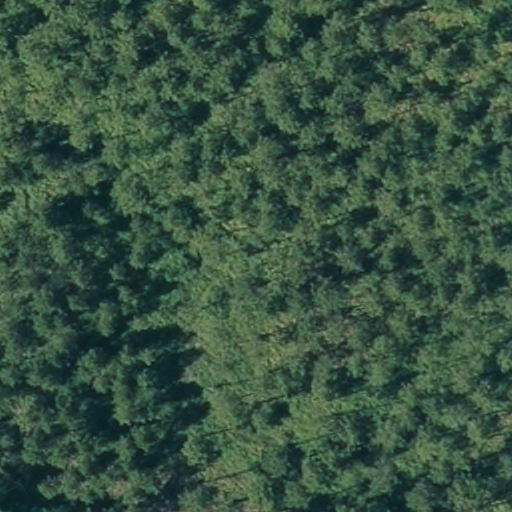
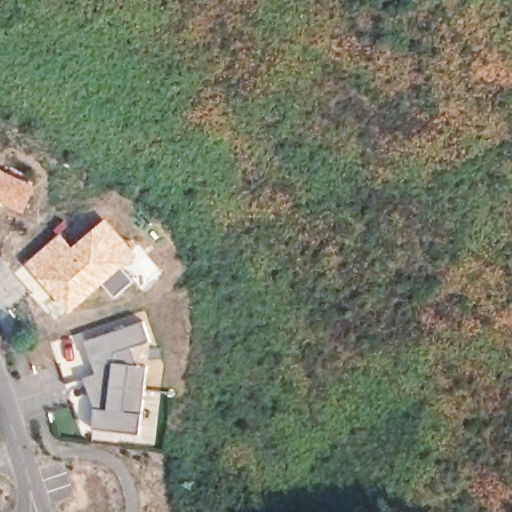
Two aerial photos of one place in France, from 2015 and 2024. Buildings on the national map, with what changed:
new [(0,168),(36,186),(25,211),(0,199),(0,168)]
new [(57,233),(52,228),(64,217),(69,224),(60,231),(72,244),(105,217),(136,254),(124,265),(136,280),(115,299),(101,284),(65,313),(21,266),(57,233)]
new [(149,337),(146,387),(111,385),(105,370),(101,362),(89,361),(80,342),(149,337)]
new [(97,391),(100,390),(94,374),(105,370),(111,385),(146,387),(144,432),(95,430),(97,391)]

